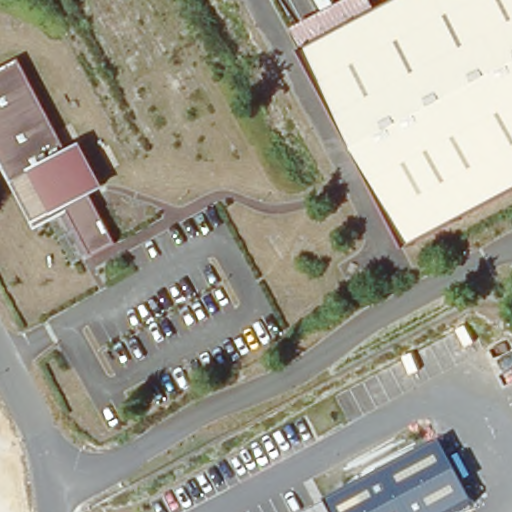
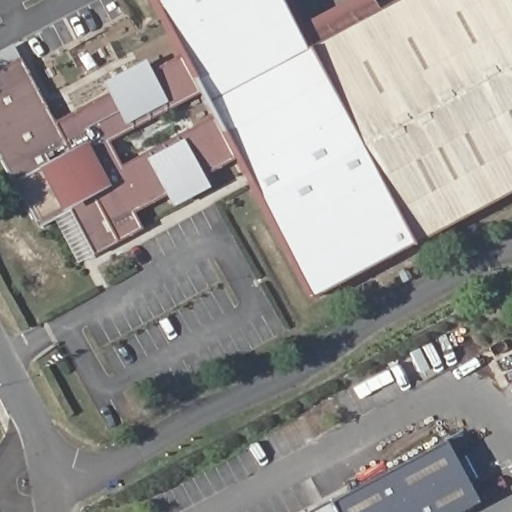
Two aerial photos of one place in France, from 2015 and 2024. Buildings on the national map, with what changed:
new [(406,243),(309,296),(238,158),(202,177),(207,188),(170,207),(165,198),(132,215),(139,230),(92,255),(69,213),(38,228),(0,157),(0,51),(12,45),(20,60),(54,123),(107,96),(101,84),(143,61),(150,74),(183,56),(153,0),(276,0),(292,30),(346,0),(372,0),(376,8),(303,46),(406,243)]
unchanged [(390,0),(512,0),(512,187),(406,243),(303,46),(390,0)]
demolished [(64,148),(84,139),(108,185),(91,192),(89,196),(113,239),(89,250),(67,210),(32,223),(0,160),(0,69),(16,60),(64,148)]
unchanged [(463,456),(474,478),(463,484),(474,502),(455,512),(308,512),(327,502),(441,441),(451,462),(463,456)]

